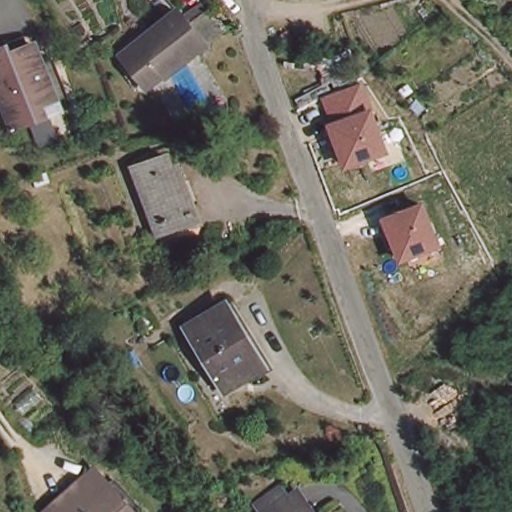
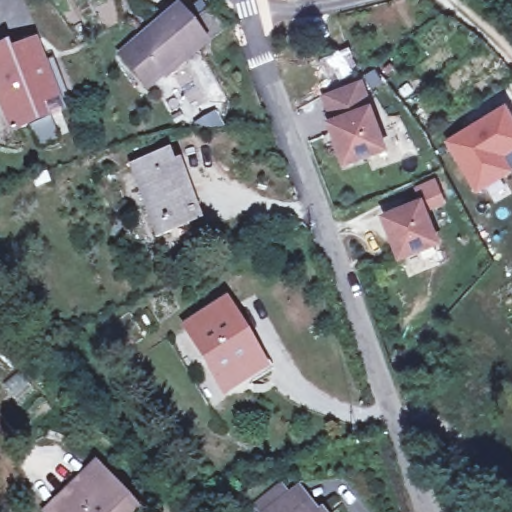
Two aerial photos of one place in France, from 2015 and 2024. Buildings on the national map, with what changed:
unchanged [(134,98),(110,69),(163,23),(166,27),(186,10),(194,19),(213,39),(191,54),(171,72),(152,90),(148,86),(134,98)]
unchanged [(38,126),(13,134),(0,97),(0,54),(12,50),(15,56),(39,48),(57,98),(63,117),(38,126)]
unchanged [(343,170),(326,121),(373,106),(389,153),(343,170)]
new [(506,106),(512,116),(512,154),(506,158),(512,170),(512,175),(478,194),(444,141),(506,106)]
unchanged [(133,167),(168,153),(194,223),(156,239),(146,215),(149,213),(133,167)]
unchanged [(400,264),(381,218),(424,200),(445,248),(400,264)]
unchanged [(184,333),(223,312),(257,373),(219,395),(184,333)]
unchanged [(67,482),(86,464),(104,482),(131,511),(131,512),(39,512),(36,509),(67,482)]
unchanged [(310,512),(281,512),(299,497),(310,512)]

